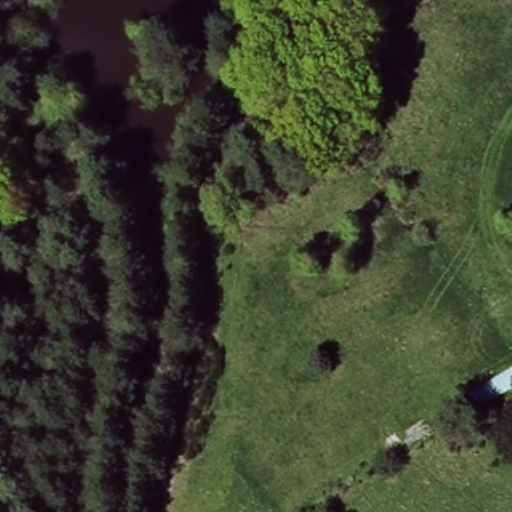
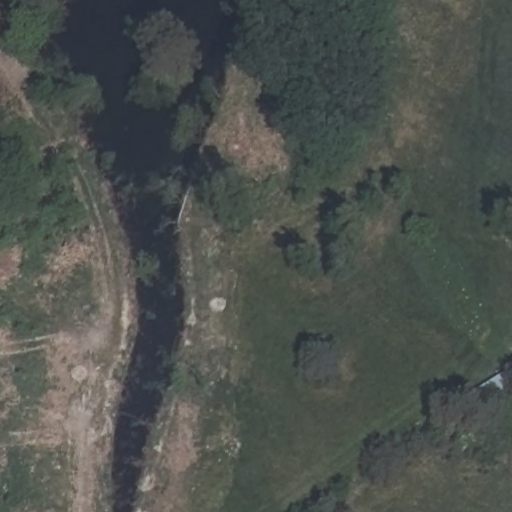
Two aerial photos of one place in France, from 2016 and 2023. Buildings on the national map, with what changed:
unchanged [(466,394),(512,366),(512,388),(476,410),(466,394)]

